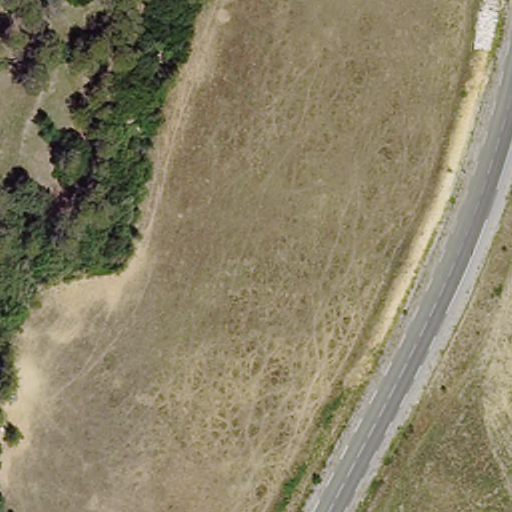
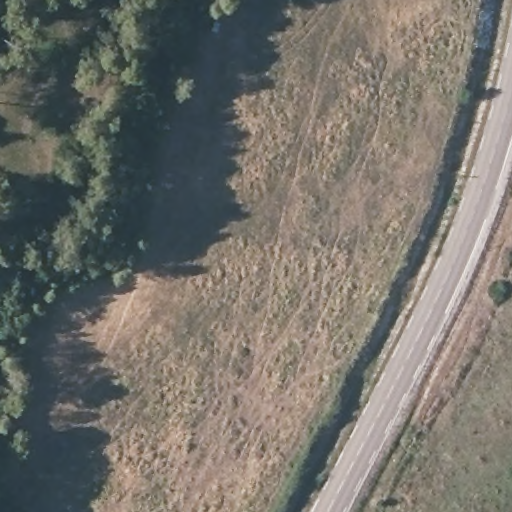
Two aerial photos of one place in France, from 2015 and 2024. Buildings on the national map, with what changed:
[]

